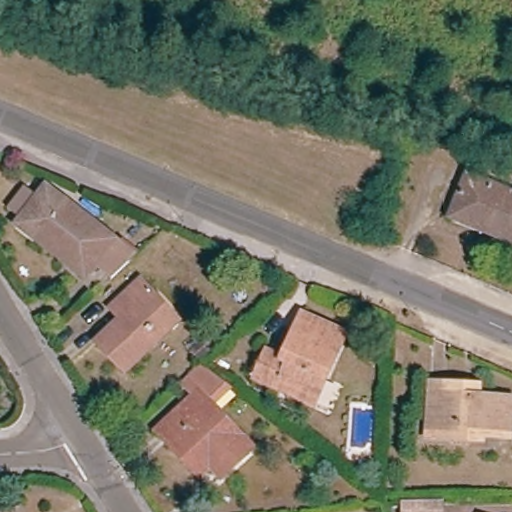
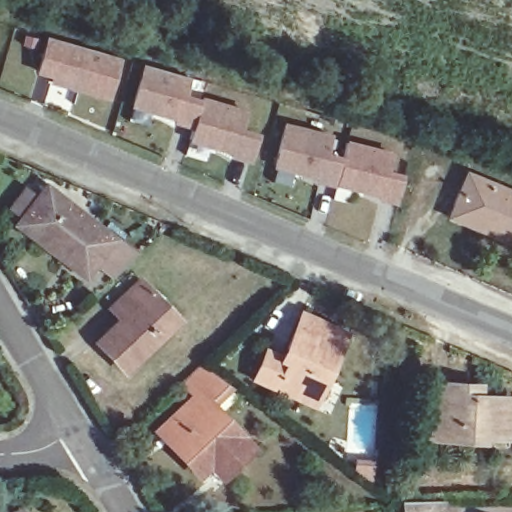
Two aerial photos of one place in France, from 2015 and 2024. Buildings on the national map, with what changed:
new [(45,38),(117,57),(106,98),(49,83),(51,77),(36,73),(45,38)]
new [(142,64),(187,76),(182,95),(199,99),(192,126),(175,121),(176,117),(131,106),(142,64)]
new [(192,126),(199,99),(199,97),(245,109),(240,128),(257,133),(250,159),(233,154),(234,150),(188,138),(192,126)]
new [(286,123),(330,133),(326,152),(343,156),(347,140),(391,150),(387,169),(404,173),(398,199),(381,195),(382,192),(337,181),(337,182),(320,178),(320,175),(276,164),(286,123)]
unchanged [(468,175),(512,194),(512,242),(487,231),(451,216),(454,209),(468,175)]
unchanged [(20,225),(44,193),(49,188),(66,201),(101,230),(135,258),(113,278),(95,263),(84,277),(69,265),(40,241),(20,225)]
unchanged [(98,342),(121,320),(111,310),(141,282),(154,294),(178,321),(174,326),(125,372),(98,342)]
unchanged [(255,378),(267,352),(284,360),(304,316),(338,331),(347,335),(326,379),(315,405),(255,378)]
unchanged [(159,438),(166,429),(197,400),(183,386),(203,367),(233,390),(212,411),(253,455),(222,484),(208,471),(205,473),(199,480),(159,438)]
unchanged [(429,437),(430,405),(431,383),(447,384),(466,385),(480,385),(479,397),(511,399),(509,435),(484,434),(484,440),(468,440),(429,437)]
unchanged [(443,499),(444,512),(405,512),(404,500),(443,499)]
unchanged [(21,512),(19,512),(20,511),(21,512)]

